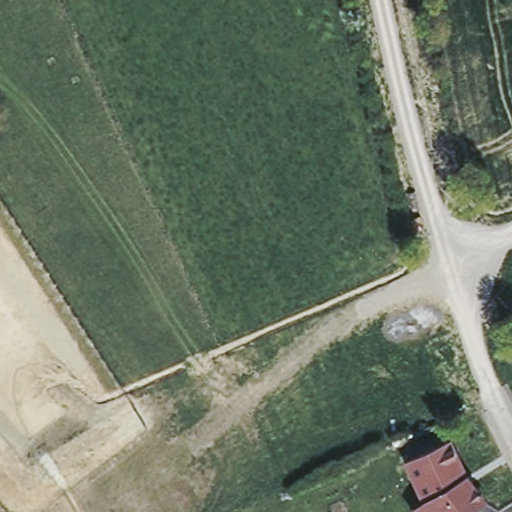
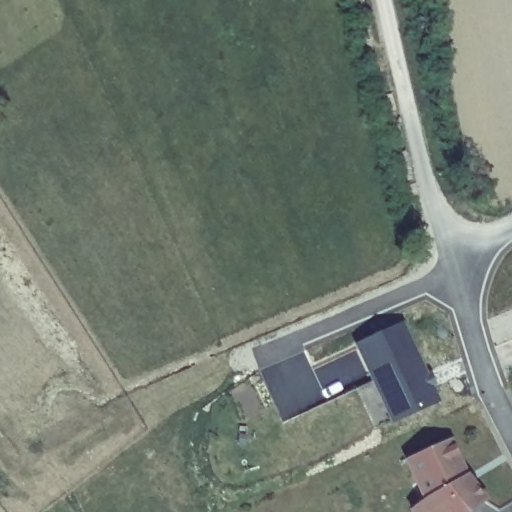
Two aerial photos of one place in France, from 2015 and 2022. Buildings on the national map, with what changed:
new [(426,373),(429,371),(436,385),(433,387),(440,402),(391,426),(389,421),(378,427),(369,409),(379,403),(353,345),(404,323),(426,373)]
unchanged [(420,501),(402,462),(439,447),(446,444),(462,479),(480,503),(475,506),(468,512),(406,512),(406,511),(420,501)]

